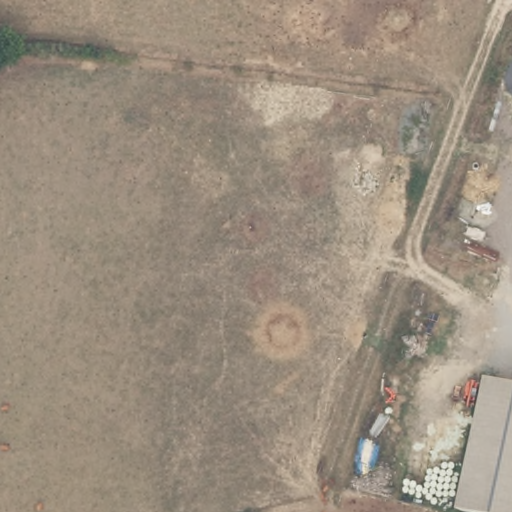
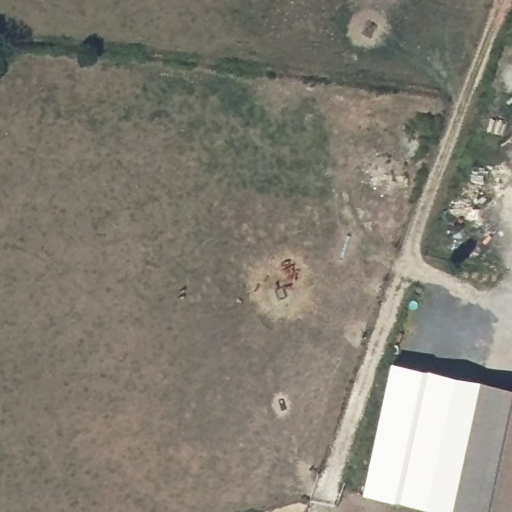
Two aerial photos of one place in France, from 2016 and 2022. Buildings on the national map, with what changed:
new [(452,512),(363,491),(392,358),(481,383),(454,512),(452,512)]
unchanged [(454,512),(481,383),(512,389),(512,512),(454,512)]

